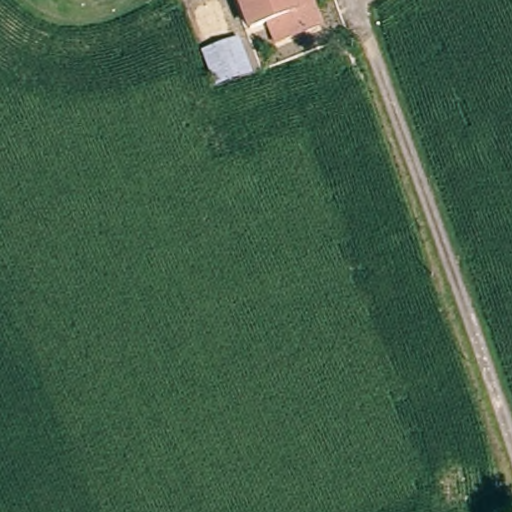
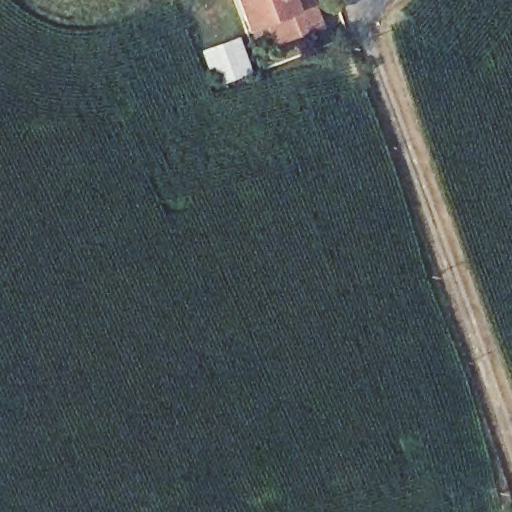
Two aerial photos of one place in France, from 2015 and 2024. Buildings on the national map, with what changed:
unchanged [(282,15),(255,25),(245,0),(296,0),(300,8),(282,15)]
unchanged [(329,25),(291,39),(282,15),(300,8),(320,0),(329,25)]
unchanged [(296,0),(319,0),(320,0),(300,8),(296,0)]
unchanged [(261,67),(222,80),(210,42),(249,29),(261,67)]

